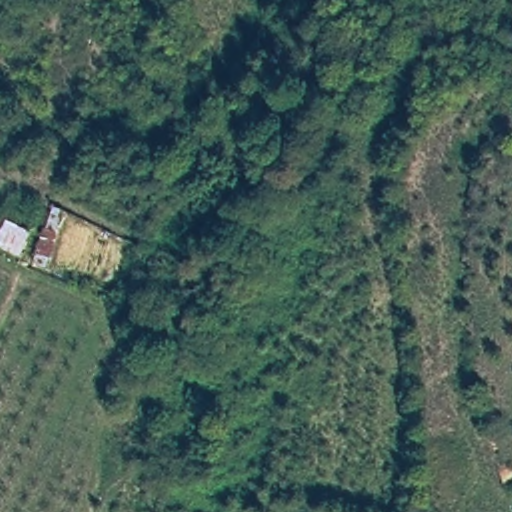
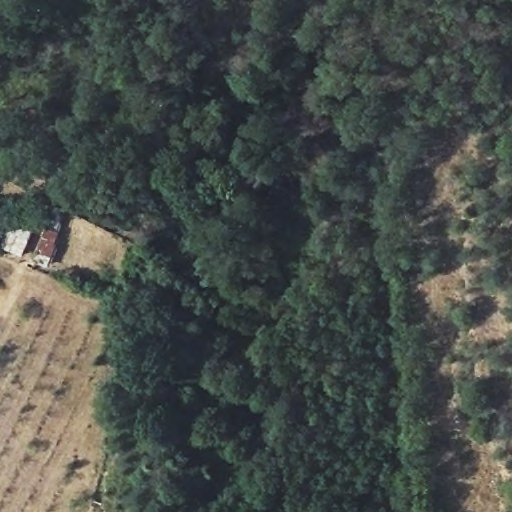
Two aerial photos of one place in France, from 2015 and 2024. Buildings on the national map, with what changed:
unchanged [(21,254),(0,246),(0,231),(5,220),(30,231),(21,254)]
unchanged [(50,266),(34,260),(45,227),(59,232),(50,266)]

